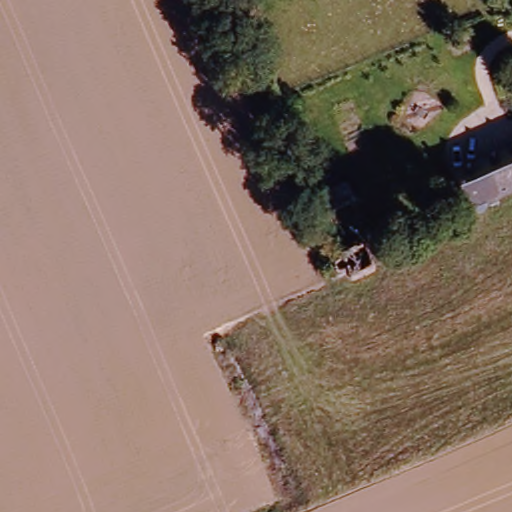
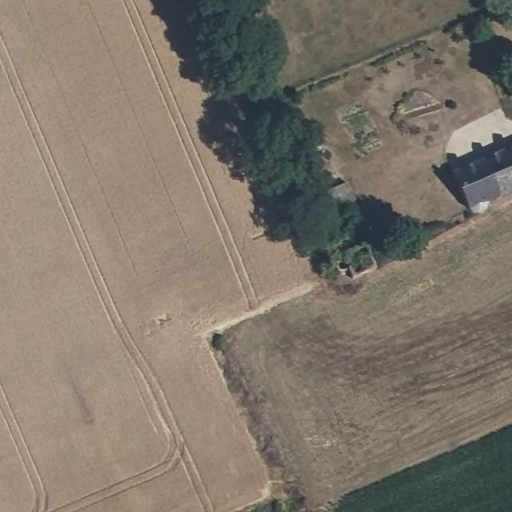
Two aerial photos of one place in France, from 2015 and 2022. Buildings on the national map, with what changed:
unchanged [(449,179),(512,150),(512,191),(465,212),(449,179)]
unchanged [(373,210),(380,225),(385,237),(385,239),(358,252),(352,239),(347,227),(345,222),(373,210)]

